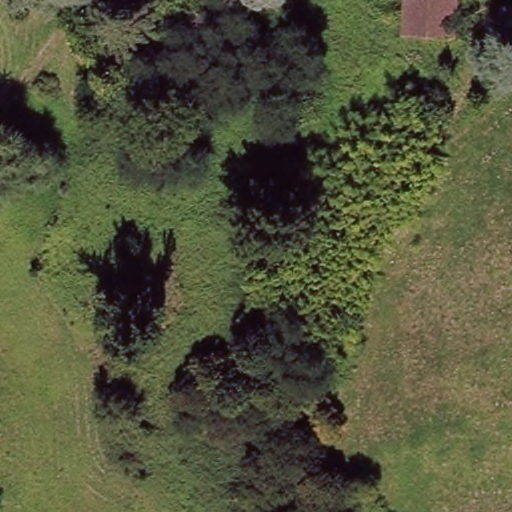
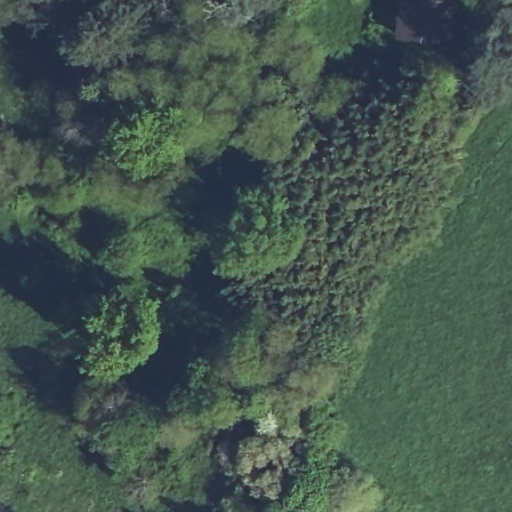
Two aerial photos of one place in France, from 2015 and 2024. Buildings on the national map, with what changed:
unchanged [(453,0),(450,38),(403,35),(405,0),(453,0)]

